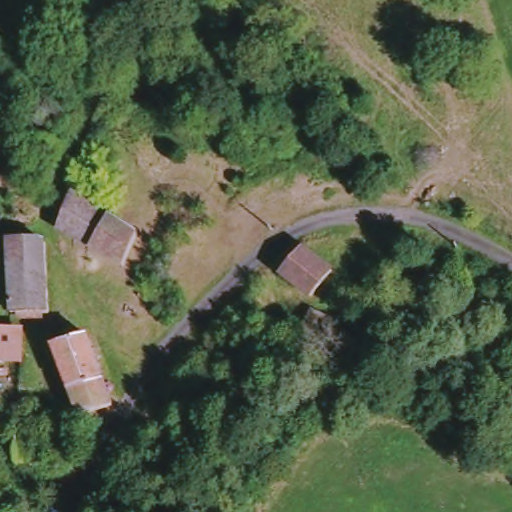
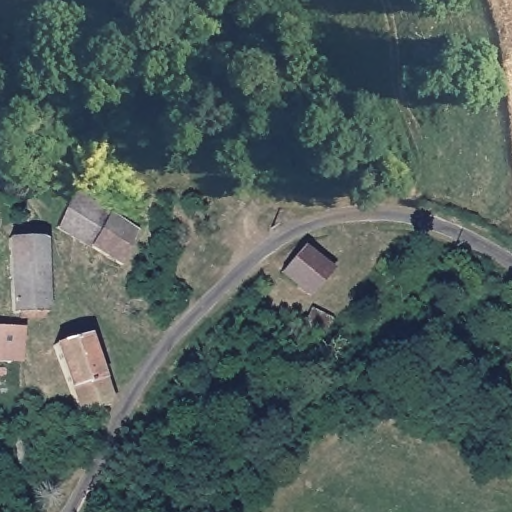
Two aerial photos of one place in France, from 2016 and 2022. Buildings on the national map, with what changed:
unchanged [(57,228),(73,199),(138,233),(121,261),(57,228)]
unchanged [(53,316),(13,315),(7,240),(12,242),(47,240),(53,316)]
unchanged [(308,245),(336,270),(315,297),(285,273),(308,245)]
unchanged [(321,331),(310,346),(292,331),(301,321),(310,311),(326,325),(321,331)]
unchanged [(4,322),(18,332),(20,361),(0,361),(0,322),(4,322)]
unchanged [(86,333),(110,406),(80,417),(57,343),(86,333)]

